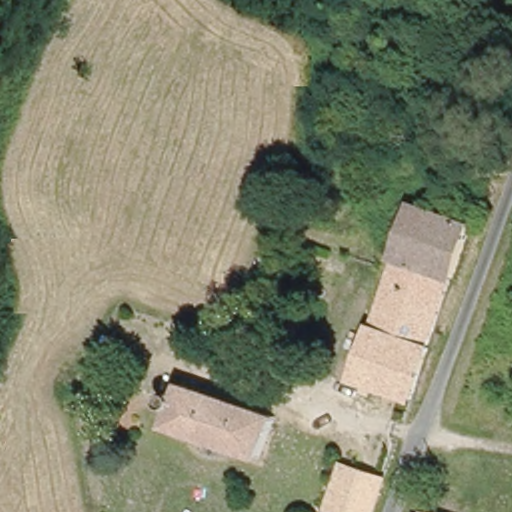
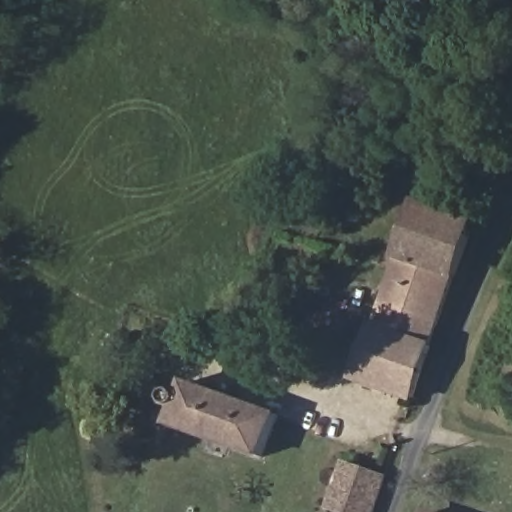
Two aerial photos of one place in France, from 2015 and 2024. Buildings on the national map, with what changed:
unchanged [(414,197),(474,220),(411,397),(352,375),(414,197)]
unchanged [(161,405),(166,392),(178,396),(183,386),(275,418),(260,460),(168,427),(174,410),(161,405)]
unchanged [(383,475),(370,512),(343,512),(327,506),(334,486),(343,461),(383,475)]

